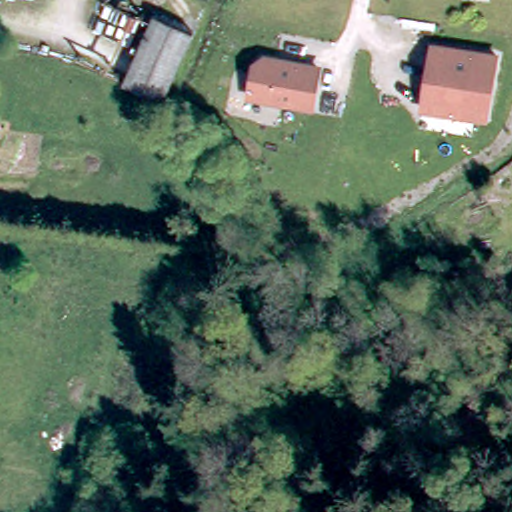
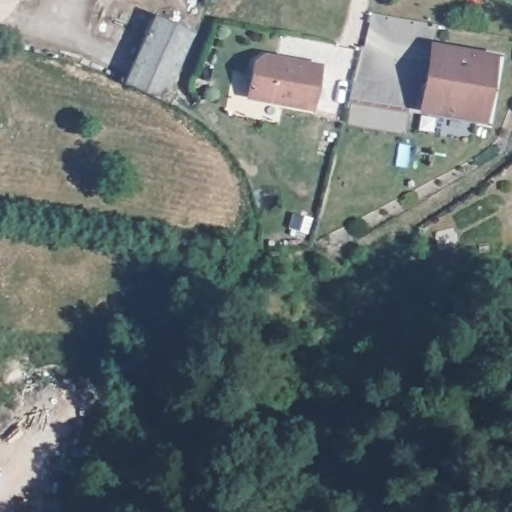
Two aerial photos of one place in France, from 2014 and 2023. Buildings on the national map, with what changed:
unchanged [(186,28),(164,82),(157,99),(120,82),(150,14),(186,28)]
unchanged [(419,112),(430,42),(499,54),(488,125),(419,112)]
unchanged [(266,53),(323,64),(315,109),(245,97),(253,61),(266,53)]

